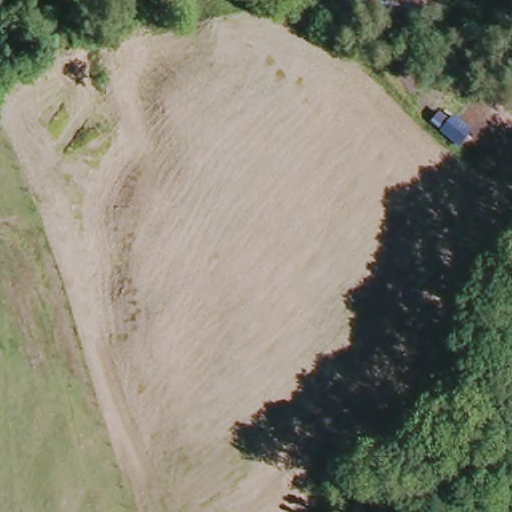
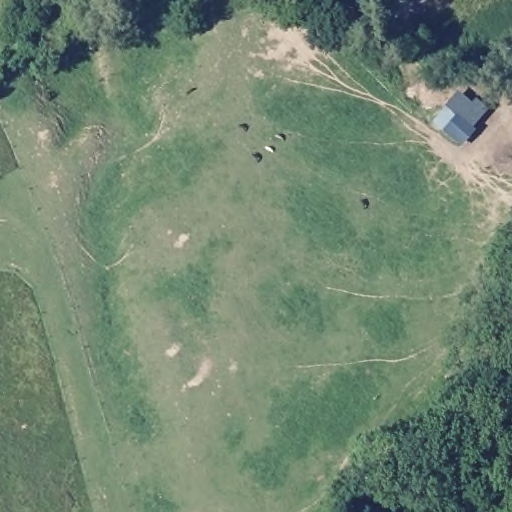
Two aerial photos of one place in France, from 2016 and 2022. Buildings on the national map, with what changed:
[]

